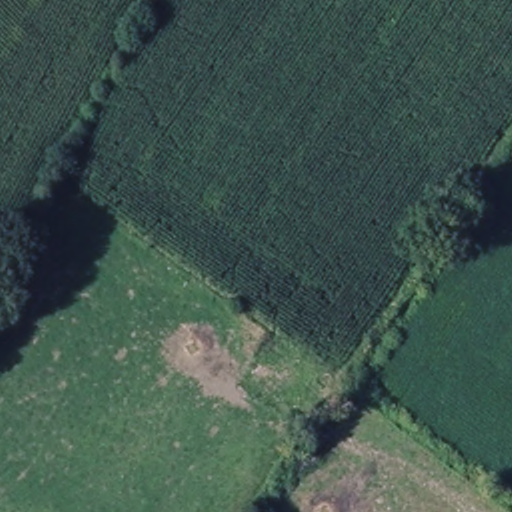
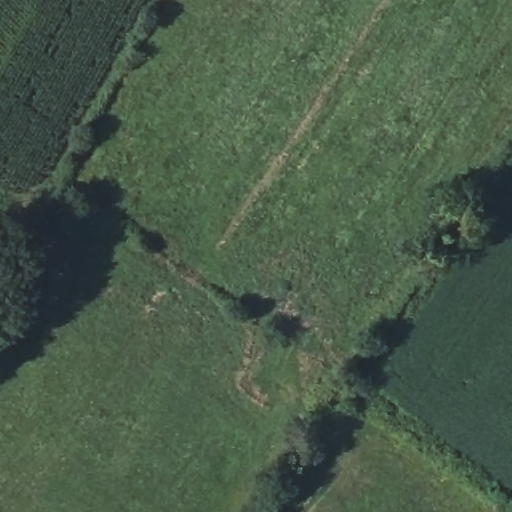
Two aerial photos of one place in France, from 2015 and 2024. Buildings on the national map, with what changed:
[]

